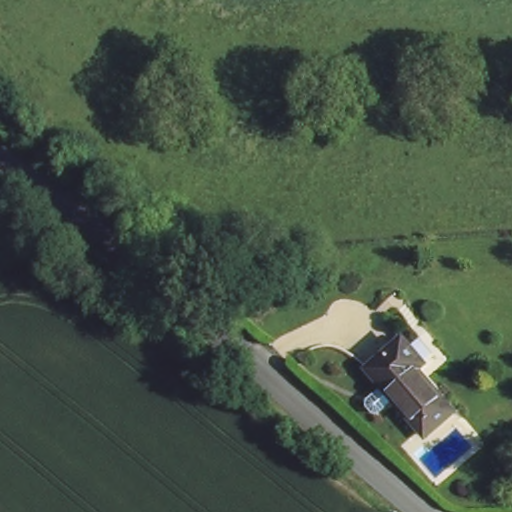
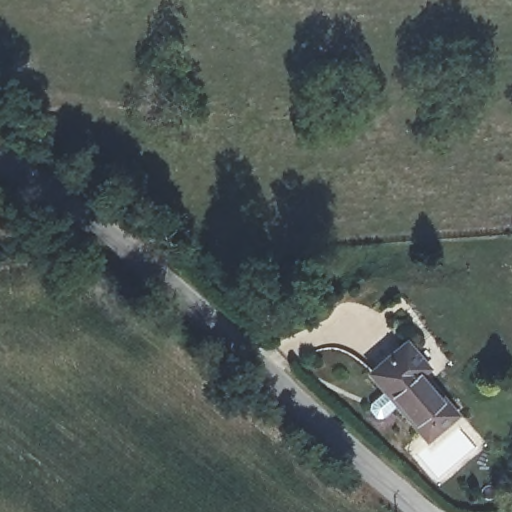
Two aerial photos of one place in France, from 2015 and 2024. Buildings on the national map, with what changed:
unchanged [(408,345),(427,367),(420,375),(457,415),(432,437),(374,378),(408,345)]

